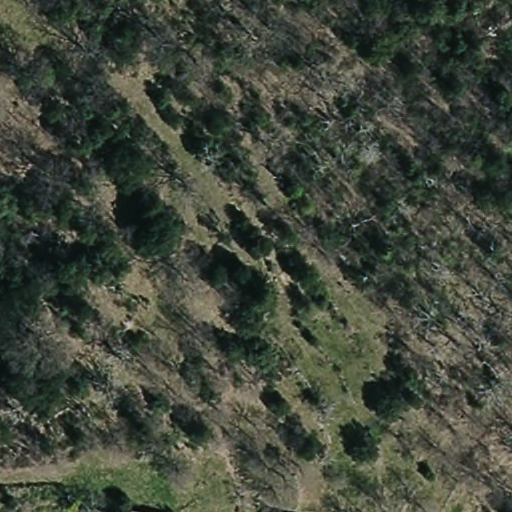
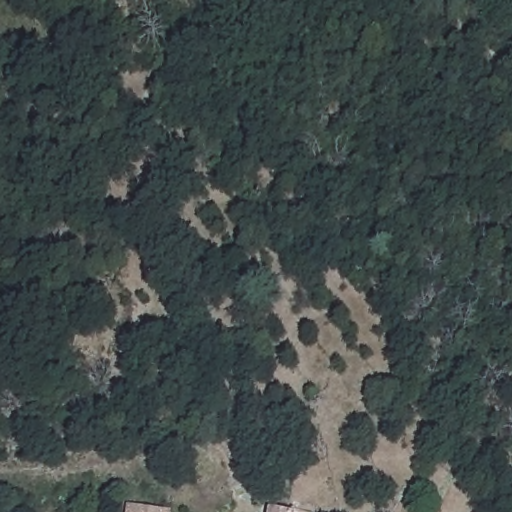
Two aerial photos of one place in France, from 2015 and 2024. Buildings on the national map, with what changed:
unchanged [(173,511),(173,512),(131,512),(132,506),(173,511)]

